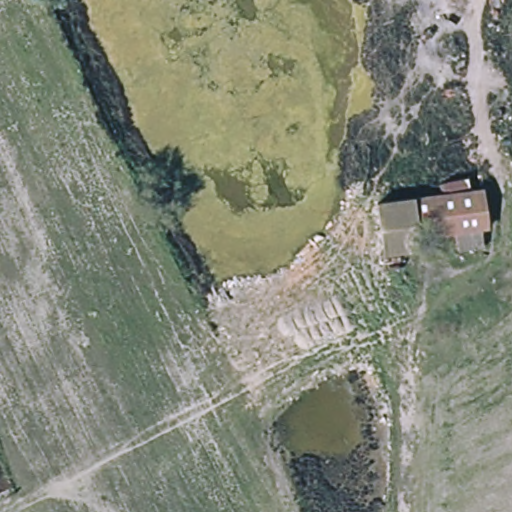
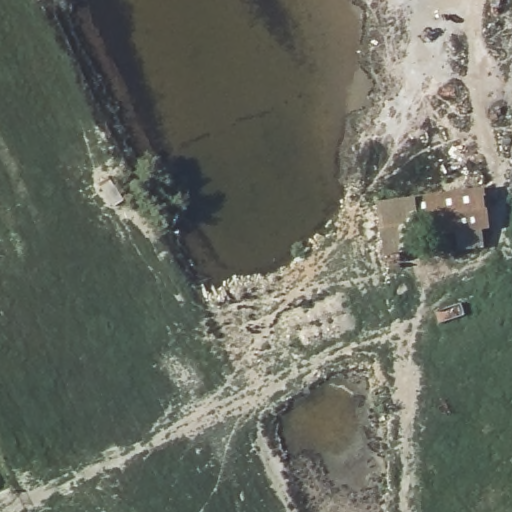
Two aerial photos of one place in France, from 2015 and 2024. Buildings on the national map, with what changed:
unchanged [(482,183),(488,222),(481,223),(484,240),(457,244),(455,226),(417,231),(418,242),(382,247),(375,197),(482,183)]

